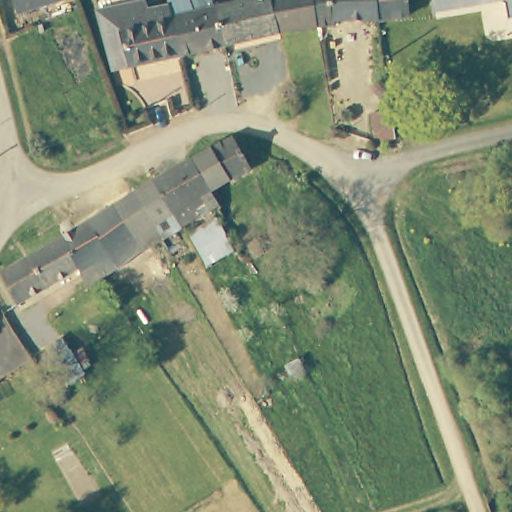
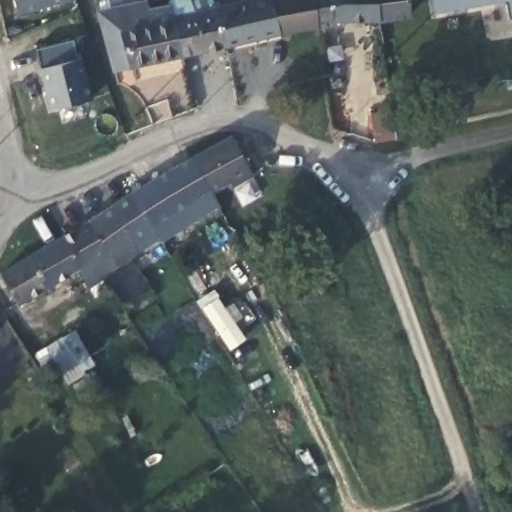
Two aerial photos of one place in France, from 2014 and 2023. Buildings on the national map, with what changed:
unchanged [(18,11),(15,0),(56,0),(18,11)]
unchanged [(200,0),(260,0),(268,34),(213,47),(203,8),(200,0)]
unchanged [(260,0),(301,0),(307,28),(287,31),(268,34),(260,0)]
unchanged [(301,0),(365,0),(369,19),(324,22),(324,27),(307,28),(301,0)]
unchanged [(403,11),(374,17),(369,19),(365,0),(400,0),(403,11)]
unchanged [(476,2),(434,11),(432,0),(484,0),(476,2)]
unchanged [(505,17),(502,1),(499,0),(512,0),(512,15),(505,17)]
unchanged [(174,56),(150,62),(106,72),(99,34),(98,28),(94,14),(129,7),(137,6),(161,1),(161,5),(164,17),(174,56)]
unchanged [(203,8),(213,47),(174,56),(164,17),(203,8)]
new [(75,44),(80,63),(83,62),(95,103),(55,114),(38,55),(75,44)]
unchanged [(394,134),(373,138),(369,112),(390,109),(394,134)]
unchanged [(231,134),(252,165),(210,188),(189,158),(231,134)]
unchanged [(189,158),(210,188),(221,204),(210,210),(184,226),(150,181),(189,158)]
unchanged [(127,194),(150,181),(184,226),(180,227),(159,240),(127,194)]
unchanged [(127,194),(159,240),(140,251),(109,205),(127,194)]
unchanged [(109,205),(140,251),(117,265),(87,218),(109,205)]
unchanged [(184,226),(210,210),(234,251),(204,267),(180,227),(184,226)]
unchanged [(87,218),(117,265),(101,274),(90,258),(77,266),(60,235),(87,218)]
unchanged [(14,303),(0,276),(0,272),(60,235),(77,266),(14,303)]
unchanged [(78,378),(63,387),(44,353),(59,345),(78,378)]

